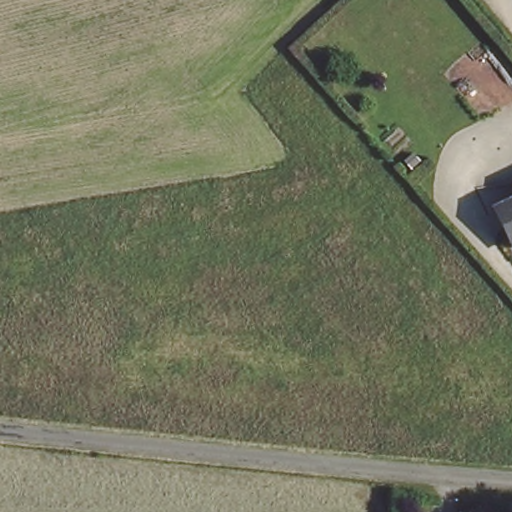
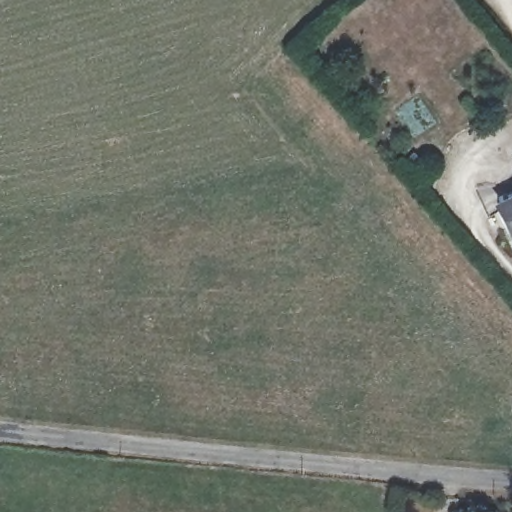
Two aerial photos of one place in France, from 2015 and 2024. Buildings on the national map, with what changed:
unchanged [(512,202),(512,232),(501,208),(512,202)]

